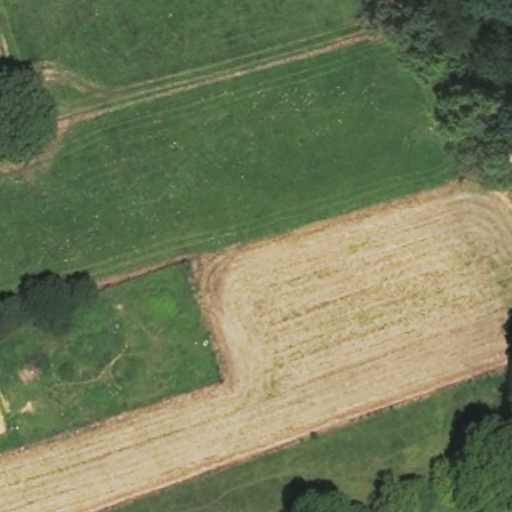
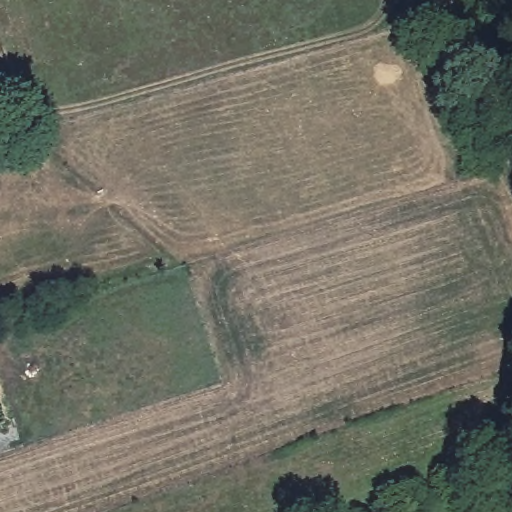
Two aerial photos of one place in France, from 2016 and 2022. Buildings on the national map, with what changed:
[]

